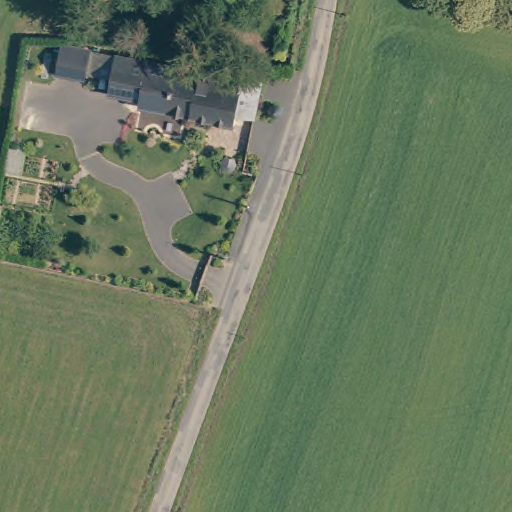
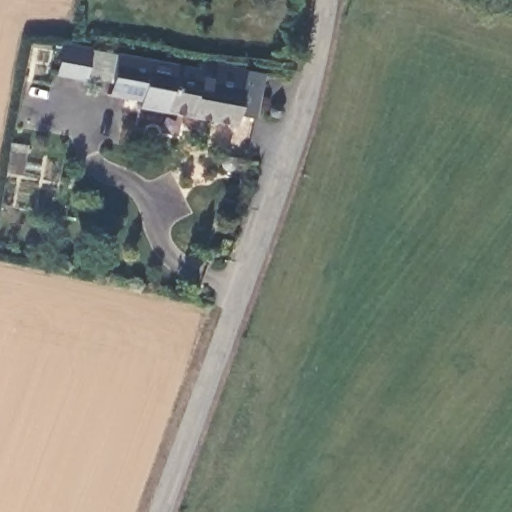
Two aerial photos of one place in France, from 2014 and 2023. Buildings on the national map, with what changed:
unchanged [(229,111),(227,121),(132,104),(133,97),(101,92),(108,51),(191,66),(192,58),(256,70),(247,114),(229,111)]
unchanged [(72,84),(59,82),(64,52),(78,54),(94,57),(89,87),(72,84)]
unchanged [(278,117),(275,119),(271,116),(271,111),(273,107),(278,105),(281,109),(281,113),(278,117)]
unchanged [(215,157),(212,152),(214,147),(217,144),(222,144),(227,146),(229,151),(228,155),(225,159),(220,159),(215,157)]

